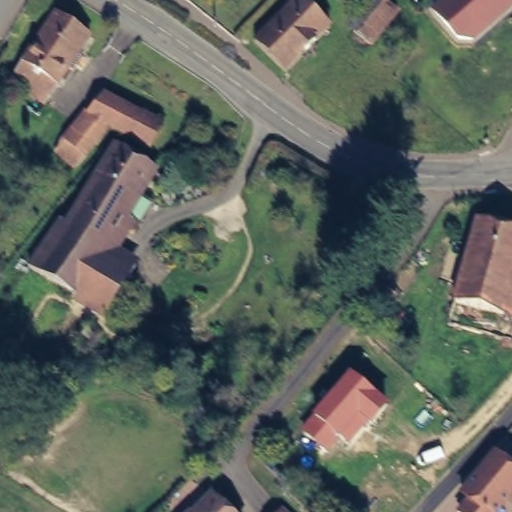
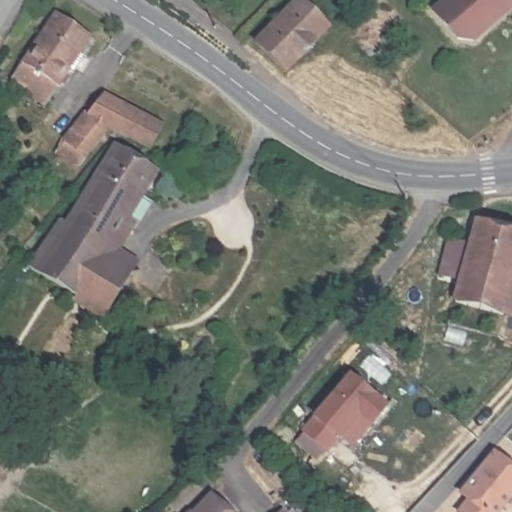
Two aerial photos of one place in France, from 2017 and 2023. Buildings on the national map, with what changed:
unchanged [(385,23),(369,42),(352,28),(376,0),(381,0),(398,10),(385,23)]
unchanged [(455,39),(432,9),(442,0),(512,0),(512,10),(476,42),(455,39)]
unchanged [(323,28),(281,70),(252,41),(293,1),(323,28)]
unchanged [(30,89),(12,78),(22,61),(53,12),(90,34),(58,83),(48,99),(30,89)]
unchanged [(63,149),(65,151),(110,95),(168,120),(158,140),(115,120),(81,163),(73,173),(55,158),(63,149)]
unchanged [(28,273),(54,235),(73,207),(81,211),(117,158),(157,183),(103,264),(132,282),(105,322),(28,273)]
unchanged [(449,321),(477,214),(512,225),(512,284),(498,334),(449,321)]
unchanged [(313,416),(350,372),(388,403),(372,426),(367,423),(350,446),(339,437),(328,453),(300,431),(313,416)]
unchanged [(466,512),(471,504),(464,498),(496,460),(512,473),(512,502),(505,512),(466,512)]
unchanged [(188,512),(207,490),(232,512),(188,512)]
unchanged [(289,512),(281,512),(285,508),(289,512)]

